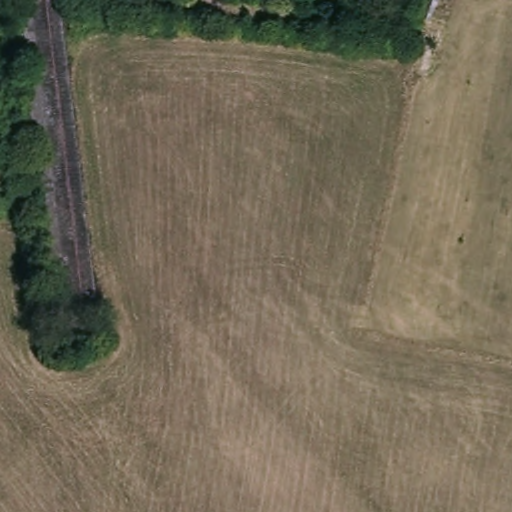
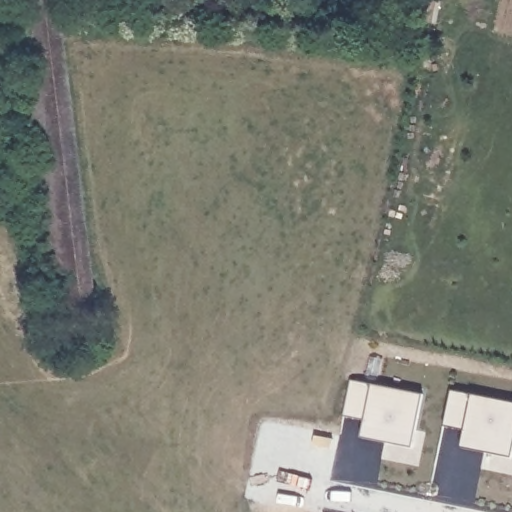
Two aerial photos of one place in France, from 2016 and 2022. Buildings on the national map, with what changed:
unchanged [(62,0),(104,340),(59,346),(42,207),(17,0),(62,0)]
new [(372,385),(422,396),(412,446),(361,436),(365,418),(345,415),(352,381),(372,385)]
new [(512,452),(511,457),(461,446),(464,427),(444,425),(450,391),(512,403),(512,452)]

